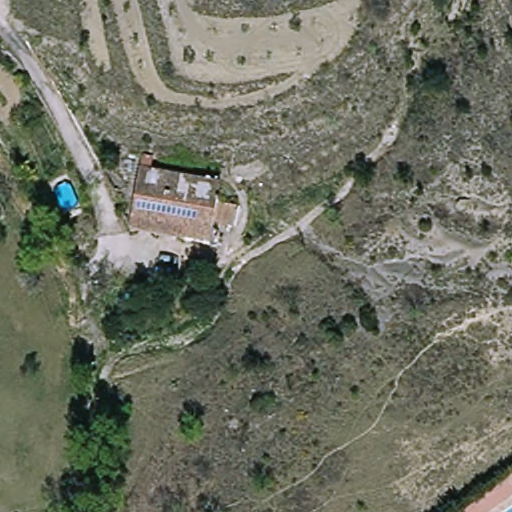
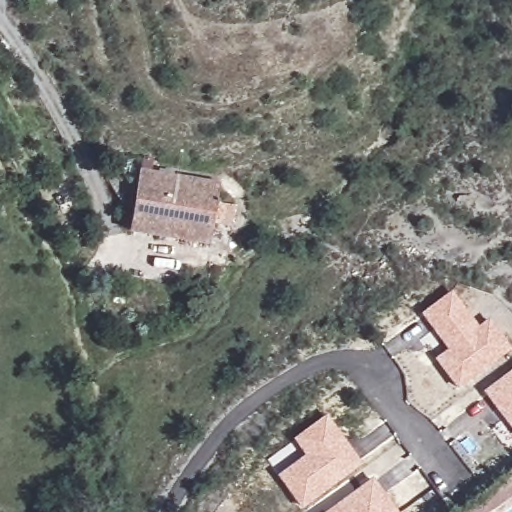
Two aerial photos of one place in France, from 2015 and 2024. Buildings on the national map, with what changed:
unchanged [(136,214),(142,191),(143,187),(147,169),(193,180),(224,188),(211,245),(186,239),(133,226),(136,214)]
new [(512,348),(512,349),(458,388),(436,359),(448,350),(422,315),(453,291),(479,326),(490,318),(512,348)]
new [(512,370),(512,429),(484,391),(512,370)]
new [(294,439),(327,415),(363,463),(302,509),(278,476),(305,456),(294,439)]
new [(327,512),(373,478),(398,512),(327,512)]

